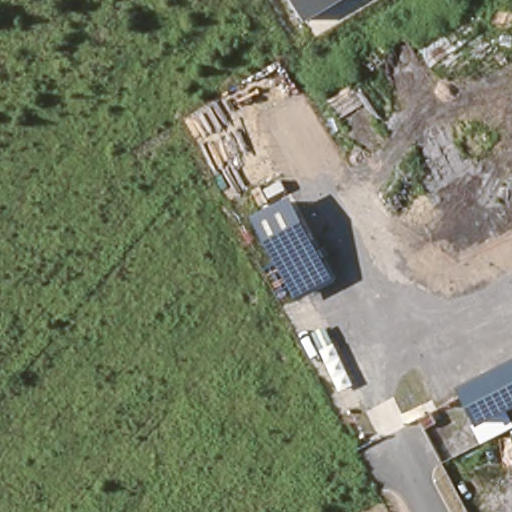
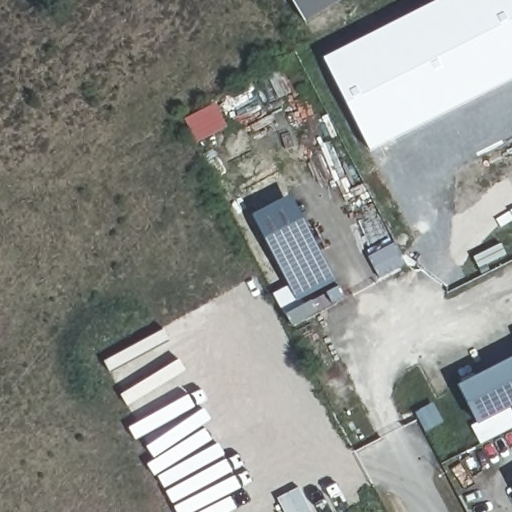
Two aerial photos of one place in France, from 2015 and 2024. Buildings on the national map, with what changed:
unchanged [(307,22),(294,0),(344,0),(307,22)]
new [(440,0),(512,0),(512,79),(371,151),(325,59),(440,0)]
unchanged [(301,300),(256,214),(292,194),(337,280),(301,300)]
unchanged [(478,422),(459,386),(512,359),(512,406),(478,422)]

